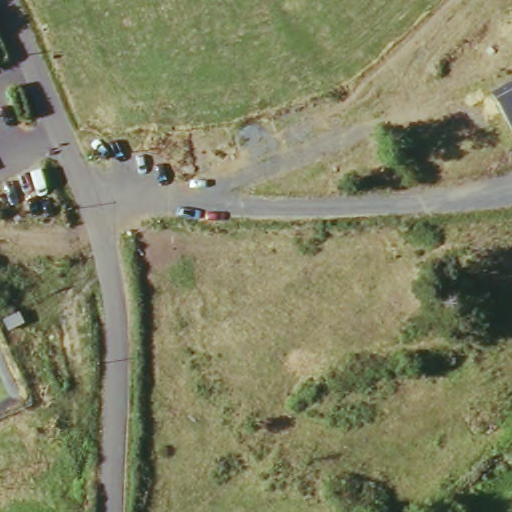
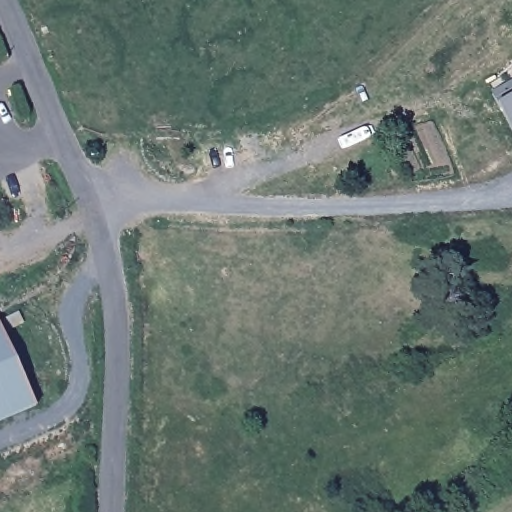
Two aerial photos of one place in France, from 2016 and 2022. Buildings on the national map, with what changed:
unchanged [(492,92),(512,82),(512,128),(498,103),(492,92)]
new [(0,422),(0,320),(17,313),(21,323),(1,332),(34,407),(0,422)]

